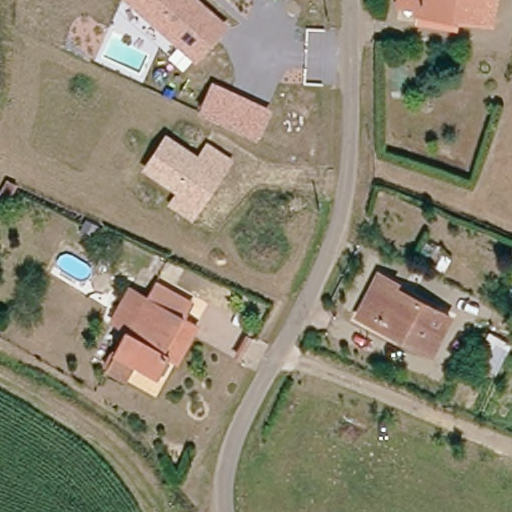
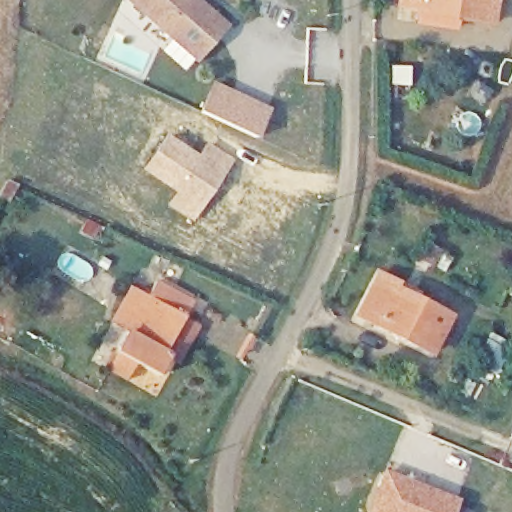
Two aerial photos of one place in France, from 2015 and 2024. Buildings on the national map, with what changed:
unchanged [(224,26),(195,59),(127,0),(194,0),(224,26)]
unchanged [(497,31),(423,22),(423,10),(401,8),(402,0),(499,0),(497,31)]
unchanged [(271,109),(256,141),(198,113),(212,83),(271,109)]
unchanged [(166,134),(197,155),(206,144),(233,162),(194,221),(168,205),(177,193),(141,170),(166,134)]
unchanged [(16,193),(4,186),(15,166),(26,173),(16,193)]
unchanged [(384,270),(409,281),(403,294),(451,316),(435,352),(363,322),(384,270)]
unchanged [(198,302),(159,376),(138,364),(127,382),(107,368),(130,326),(117,319),(137,284),(148,292),(156,277),(198,302)]
unchanged [(488,333),(512,345),(512,346),(494,376),(473,365),(488,333)]
new [(460,499),(455,512),(365,512),(383,469),(460,499)]

